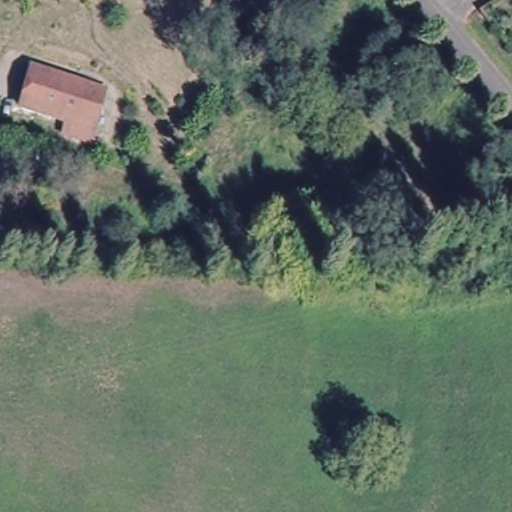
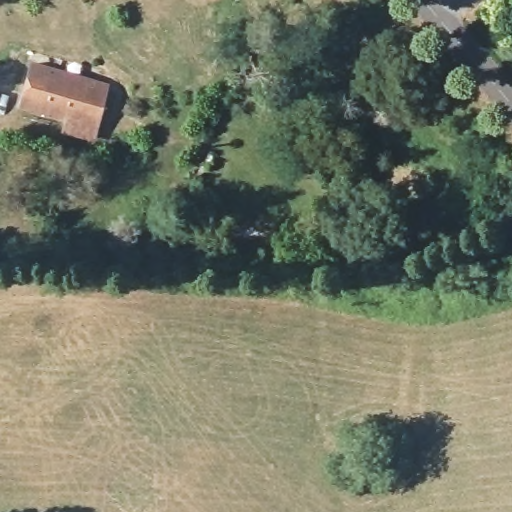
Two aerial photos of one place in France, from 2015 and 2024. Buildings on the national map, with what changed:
unchanged [(90,139),(75,133),(78,121),(27,102),(42,62),(111,90),(90,139)]

